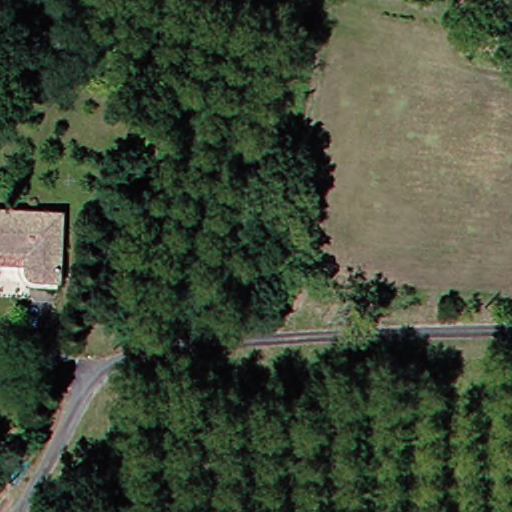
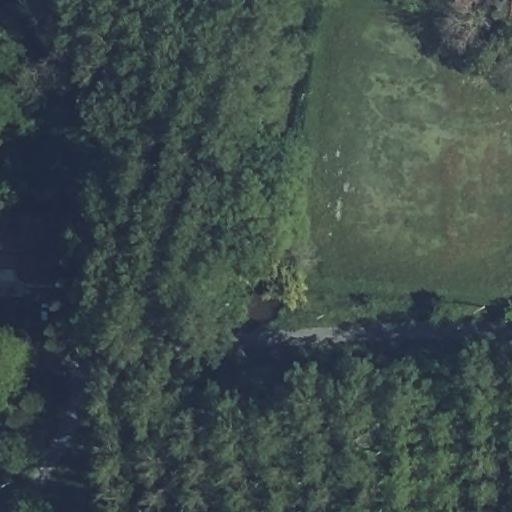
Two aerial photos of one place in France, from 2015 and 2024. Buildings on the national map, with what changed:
unchanged [(476,10),(456,7),(457,0),(477,0),(476,10)]
unchanged [(511,0),(512,0),(512,13),(508,12),(511,0)]
unchanged [(56,213),(50,287),(17,286),(12,278),(9,270),(7,268),(0,267),(0,210),(14,211),(56,213)]

